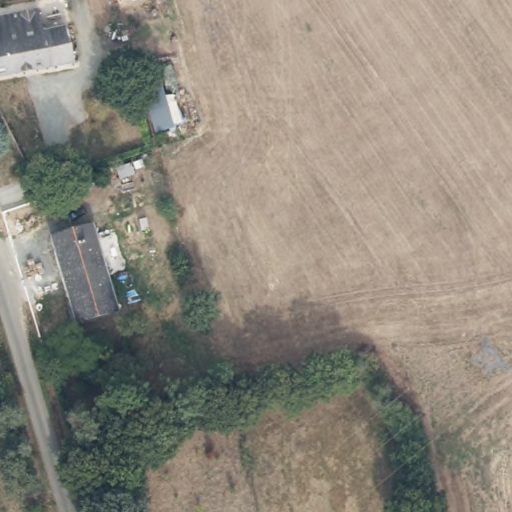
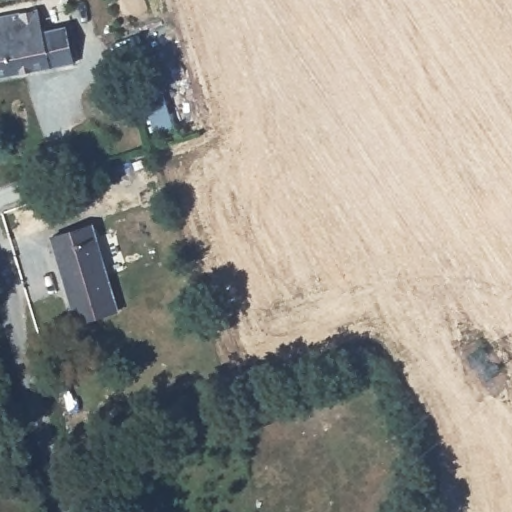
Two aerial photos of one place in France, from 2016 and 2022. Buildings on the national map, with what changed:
unchanged [(41,32),(66,27),(71,55),(46,60),(46,66),(0,75),(0,11),(37,5),(41,32)]
unchanged [(156,132),(136,68),(152,64),(172,127),(156,132)]
unchanged [(80,321),(53,237),(94,223),(119,308),(80,321)]

